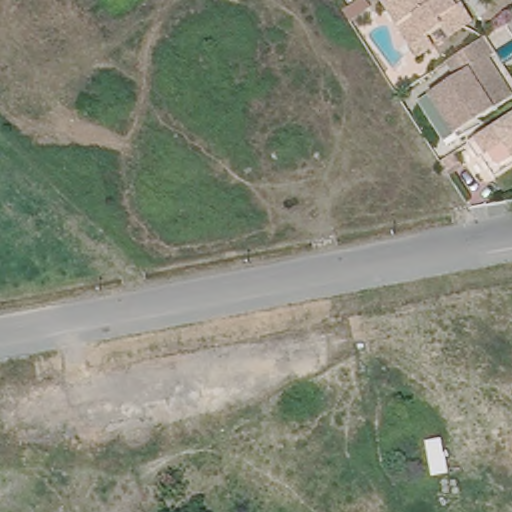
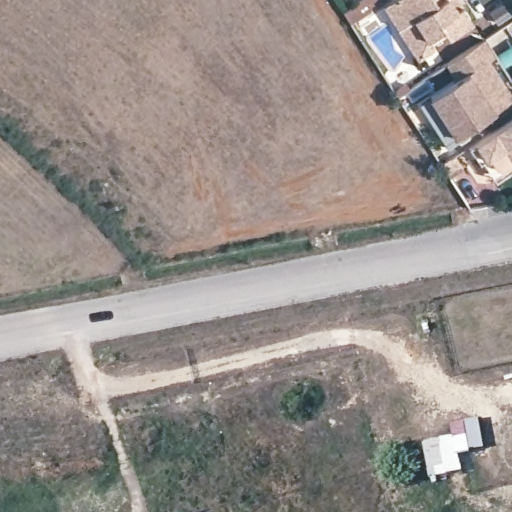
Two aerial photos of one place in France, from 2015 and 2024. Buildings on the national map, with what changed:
unchanged [(391,2),(394,0),(467,0),(470,4),(481,20),(456,35),(450,25),(435,34),(419,45),(406,26),(391,2)]
unchanged [(445,61),(484,36),(494,52),(485,58),(509,97),(454,133),(429,94),(456,76),(445,61)]
unchanged [(488,151),(490,149),(480,134),(512,113),(512,153),(496,163),(488,151)]
unchanged [(456,160),(441,169),(436,162),(451,152),(456,160)]
unchanged [(501,170),(496,163),(512,153),(512,163),(501,170)]
new [(451,424),(478,419),(483,451),(459,454),(462,471),(431,476),(425,441),(453,436),(451,424)]

